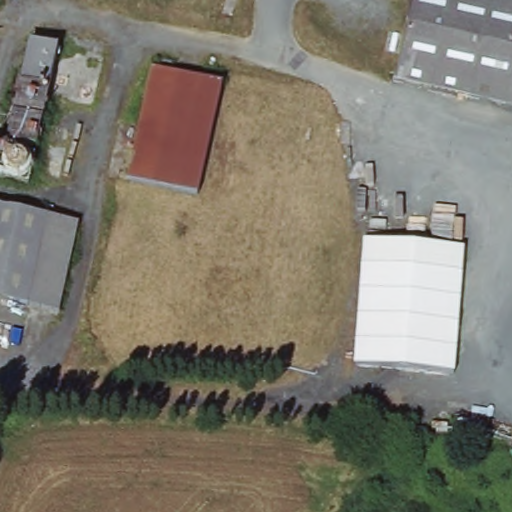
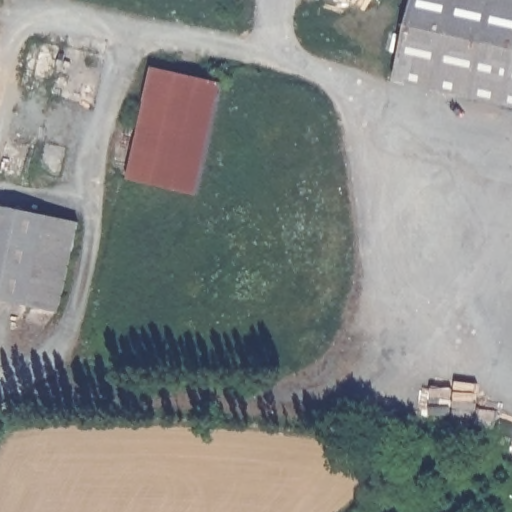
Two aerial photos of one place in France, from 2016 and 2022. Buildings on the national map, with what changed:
unchanged [(396,84),(404,42),(414,0),(512,0),(512,111),(396,84)]
demolished [(104,60),(92,110),(44,100),(39,119),(14,113),(31,43),(104,60)]
unchanged [(222,85),(198,190),(197,195),(123,180),(149,67),(222,85)]
demolished [(38,124),(31,149),(6,143),(14,116),(38,124)]
demolished [(61,151),(55,180),(34,175),(41,145),(61,151)]
unchanged [(28,308),(0,302),(0,208),(46,220),(28,308)]
unchanged [(76,229),(57,316),(28,308),(46,220),(76,229)]
demolished [(363,240),(464,246),(454,373),(354,365),(363,240)]

